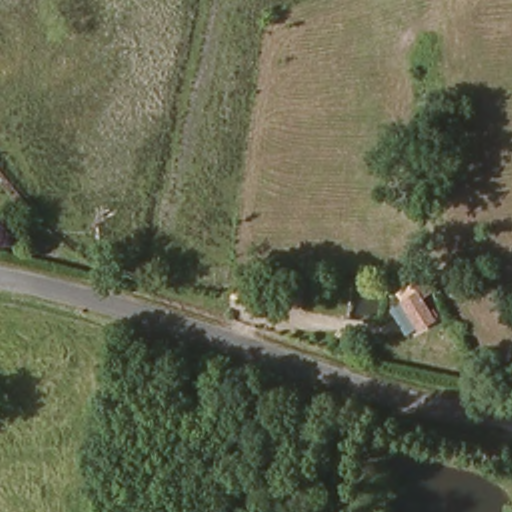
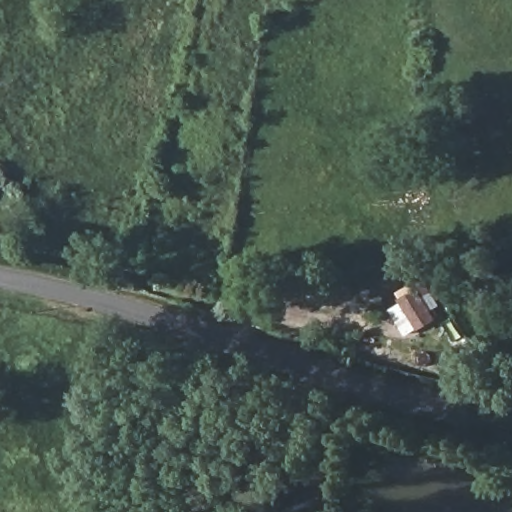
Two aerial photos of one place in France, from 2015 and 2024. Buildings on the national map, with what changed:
unchanged [(417,287),(436,317),(416,330),(398,299),(417,287)]

